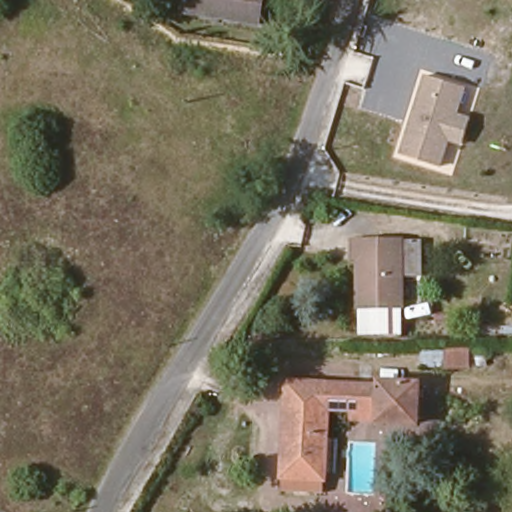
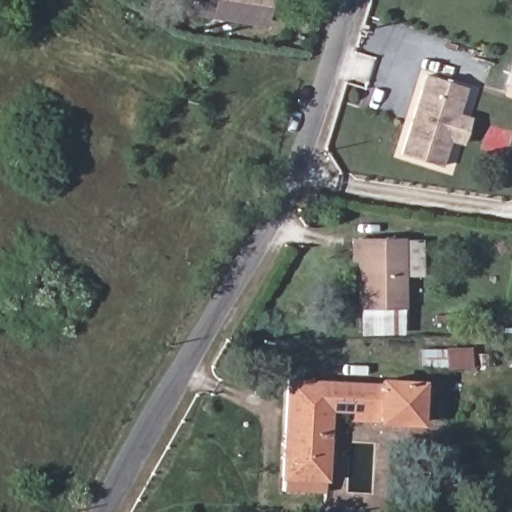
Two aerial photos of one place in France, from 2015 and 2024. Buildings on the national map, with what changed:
unchanged [(261,24),(187,12),(188,0),(264,0),(261,24)]
unchanged [(466,86),(458,111),(472,114),(462,144),(448,140),(440,166),(398,151),(424,73),(466,86)]
unchanged [(351,238),(399,235),(422,234),(422,275),(402,276),(405,309),(357,310),(351,238)]
unchanged [(420,367),(420,346),(471,344),(470,365),(420,367)]
unchanged [(511,351),(511,369),(492,369),(492,350),(511,351)]
unchanged [(282,488),(283,468),(289,379),(383,386),(382,379),(423,381),(421,424),(381,423),(355,421),(355,411),(331,409),(326,471),(325,491),(282,488)]

